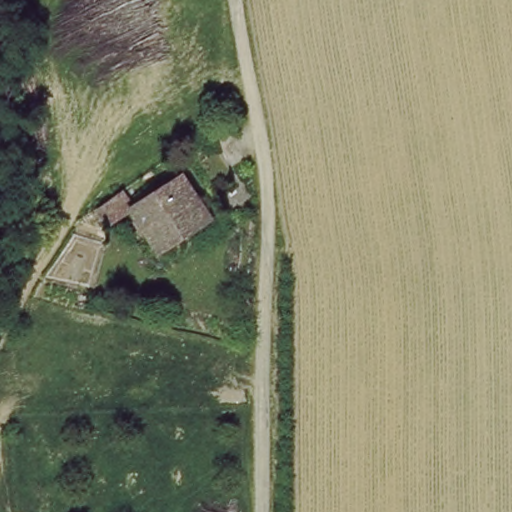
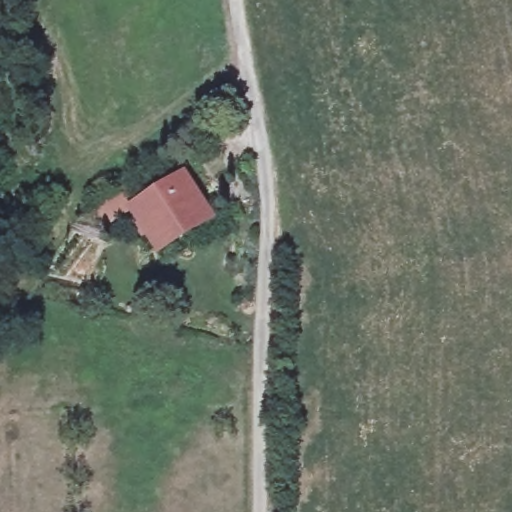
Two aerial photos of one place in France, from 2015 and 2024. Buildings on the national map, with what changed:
unchanged [(158,259),(129,220),(103,232),(92,215),(121,195),(131,210),(182,174),(212,220),(158,259)]

